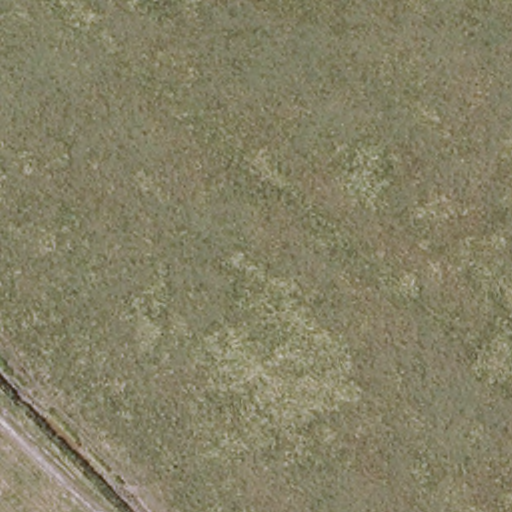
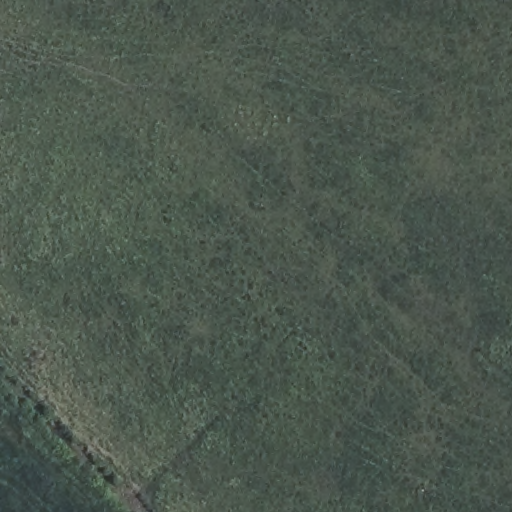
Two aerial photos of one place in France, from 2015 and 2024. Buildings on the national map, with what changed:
[]

